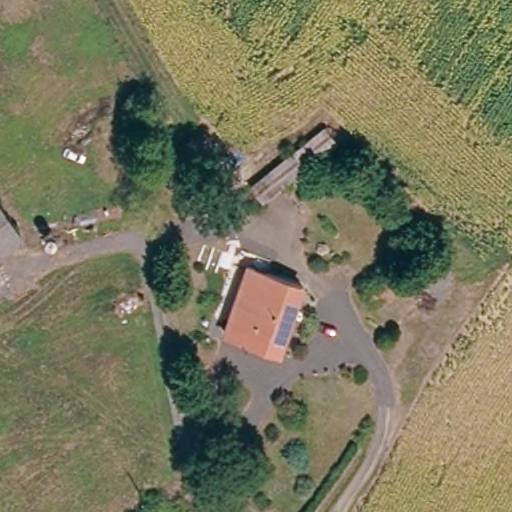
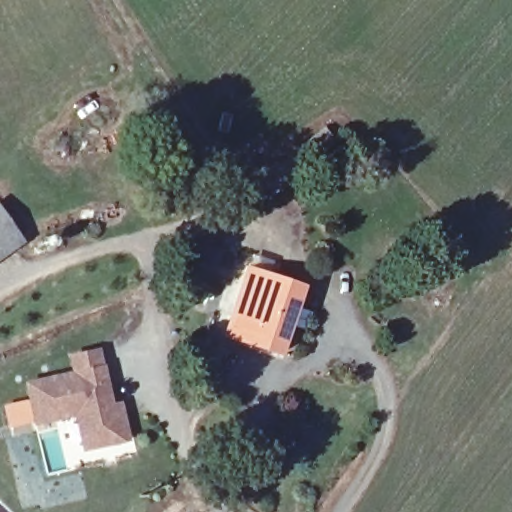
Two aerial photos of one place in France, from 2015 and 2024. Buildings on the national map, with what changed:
unchanged [(326,144),(320,149),(256,205),(244,191),(308,134),(313,130),(326,144)]
unchanged [(0,251),(0,214),(18,237),(0,251)]
unchanged [(373,293),(363,277),(385,263),(382,258),(391,252),(396,260),(399,258),(407,272),(373,293)]
unchanged [(273,357),(225,338),(250,273),(298,292),(273,357)]
new [(105,363),(112,402),(122,398),(131,440),(82,451),(75,415),(33,424),(25,379),(70,370),(67,352),(100,346),(105,363)]
demolished [(335,419),(313,408),(320,395),(276,378),(283,358),(327,377),(333,363),(355,374),(335,419)]

